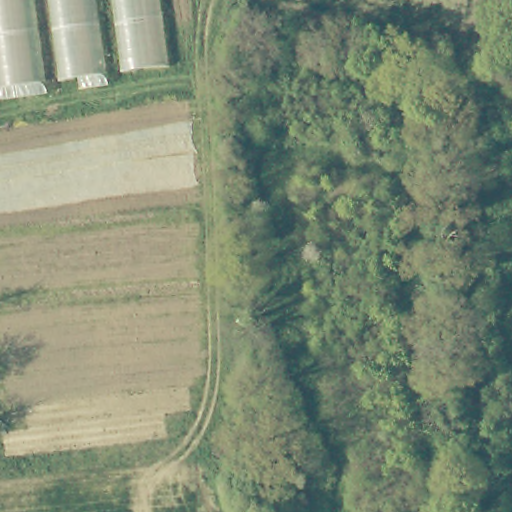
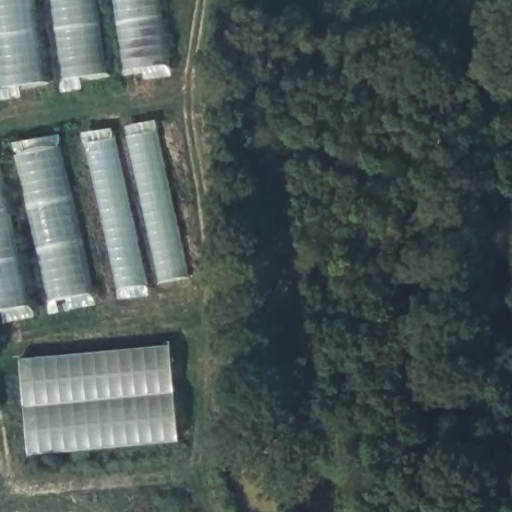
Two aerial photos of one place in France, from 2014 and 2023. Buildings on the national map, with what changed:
unchanged [(0,0),(34,0),(47,93),(0,100),(0,0)]
unchanged [(63,93),(48,0),(98,0),(109,81),(63,93)]
unchanged [(122,72),(112,0),(161,0),(170,65),(122,72)]
new [(153,121),(191,286),(118,300),(83,134),(153,121)]
new [(58,134),(95,305),(51,314),(11,144),(58,134)]
new [(0,323),(0,164),(34,317),(0,323)]
new [(27,458),(18,359),(169,345),(179,444),(27,458)]

